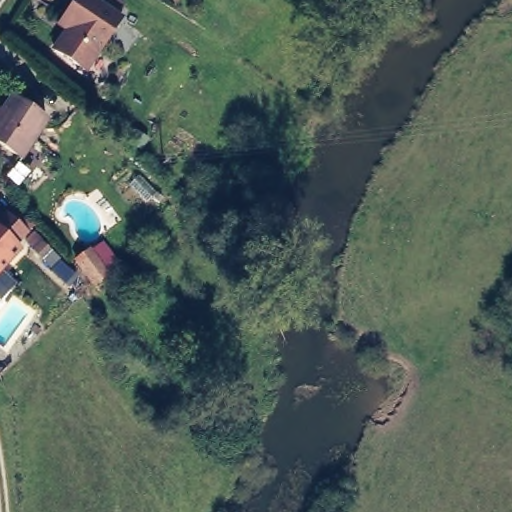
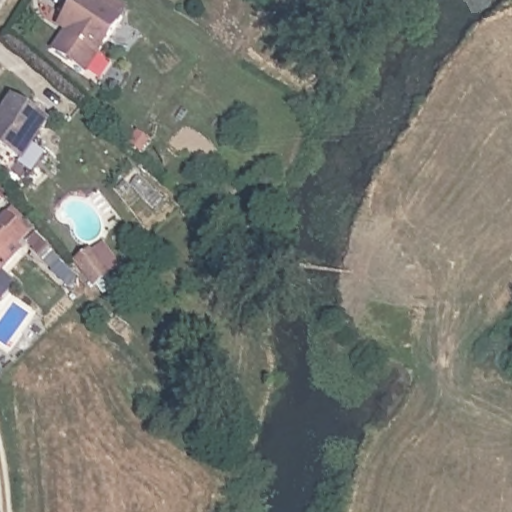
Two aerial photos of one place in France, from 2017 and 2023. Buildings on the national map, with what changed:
unchanged [(60,23),(65,16),(77,0),(98,0),(123,17),(87,70),(55,48),(68,29),(60,23)]
unchanged [(0,147),(0,115),(12,98),(47,121),(20,160),(0,147)]
unchanged [(137,141),(149,149),(142,159),(130,151),(137,141)]
unchanged [(0,271),(0,231),(20,249),(0,271)]
unchanged [(107,279),(95,287),(80,265),(92,256),(107,279)]

